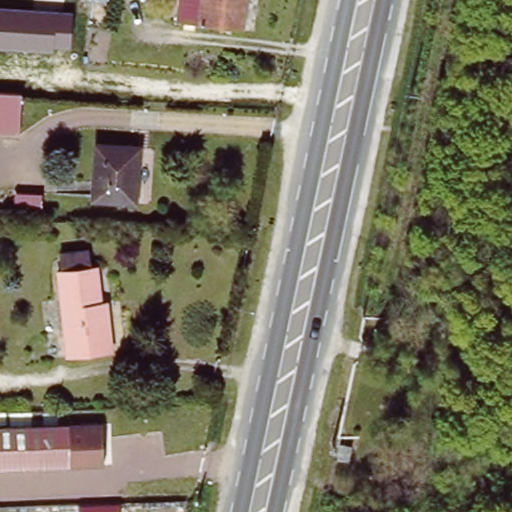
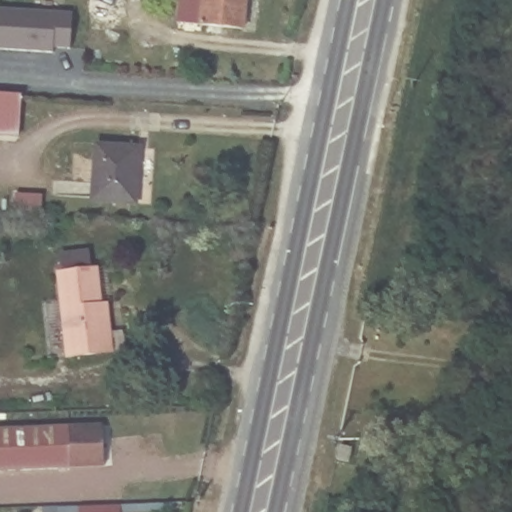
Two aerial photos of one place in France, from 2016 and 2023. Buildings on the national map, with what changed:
unchanged [(245,28),(195,25),(196,0),(246,0),(245,28)]
unchanged [(72,12),(70,49),(52,48),(53,52),(0,49),(0,8),(72,12)]
unchanged [(15,135),(0,135),(0,96),(16,97),(15,135)]
unchanged [(140,144),(140,198),(91,197),(91,144),(140,144)]
unchanged [(111,302),(112,355),(66,355),(63,267),(70,267),(69,247),(100,246),(100,268),(111,268),(111,302)]
unchanged [(0,466),(0,425),(101,422),(103,464),(0,466)]

